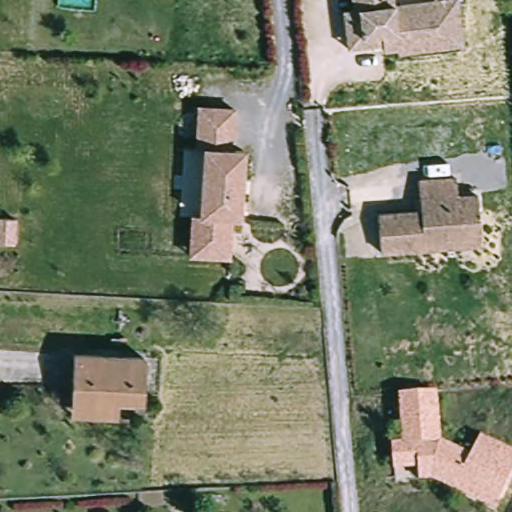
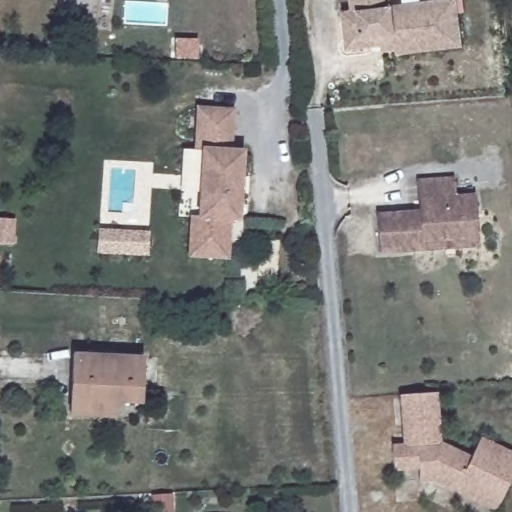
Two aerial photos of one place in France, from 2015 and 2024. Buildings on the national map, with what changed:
unchanged [(386,47),(352,51),(347,16),(357,14),(355,0),(395,0),(396,10),(438,4),(459,1),(465,41),(466,48),(401,56),(401,52),(387,54),(386,47)]
unchanged [(237,111),(234,151),(246,153),(242,221),(233,221),(231,260),(207,258),(210,219),(202,219),(202,218),(206,150),(199,150),(201,109),(237,111)]
unchanged [(427,252),(384,256),(380,218),(422,214),(419,184),(456,180),(458,199),(478,197),(480,220),(483,247),(427,252)]
unchanged [(191,257),(194,217),(202,218),(210,219),(207,258),(191,257)]
new [(101,230),(150,232),(148,261),(99,258),(101,230)]
unchanged [(143,402),(117,401),(116,418),(73,417),(74,351),(144,352),(143,402)]
unchanged [(437,480),(420,481),(420,470),(392,471),(389,445),(404,444),(401,394),(439,392),(443,441),(469,455),(481,436),(512,451),(512,480),(498,511),(437,480)]

